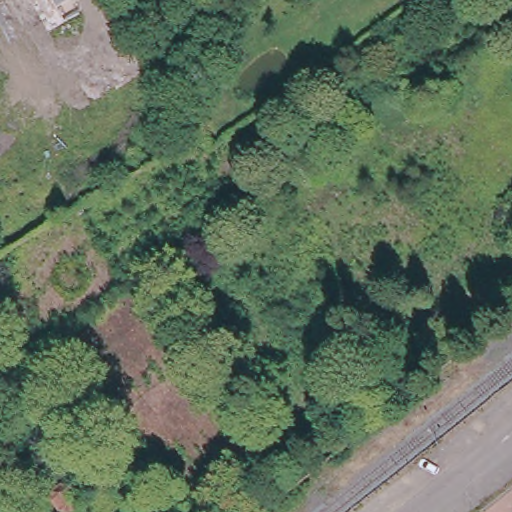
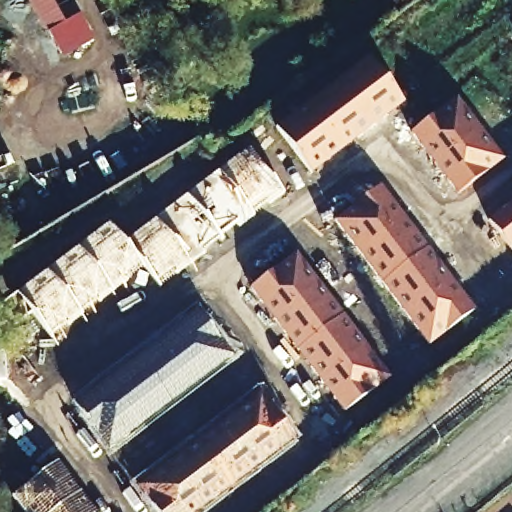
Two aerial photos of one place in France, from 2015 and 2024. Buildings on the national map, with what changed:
new [(81,12),(95,38),(62,57),(50,31),(45,33),(28,0),(53,0),(65,22),(81,12)]
new [(406,101),(312,173),(276,127),(369,57),(406,101)]
new [(504,159),(457,193),(410,132),(458,97),(504,159)]
demolished [(190,136),(198,132),(202,137),(194,142),(190,136)]
new [(282,190),(160,284),(145,264),(52,337),(32,309),(13,324),(0,307),(0,304),(110,222),(126,241),(248,150),(282,190)]
new [(474,309),(429,346),(334,220),(381,184),(474,309)]
new [(512,203),(512,252),(487,222),(512,203)]
new [(390,377),(345,413),(251,288),(297,253),(390,377)]
new [(232,355),(109,449),(72,403),(199,310),(232,355)]
new [(6,381),(0,381),(0,351),(4,350),(6,381)]
new [(300,437),(201,512),(155,512),(135,486),(262,386),(300,437)]
new [(96,512),(22,512),(11,497),(59,461),(96,512)]

